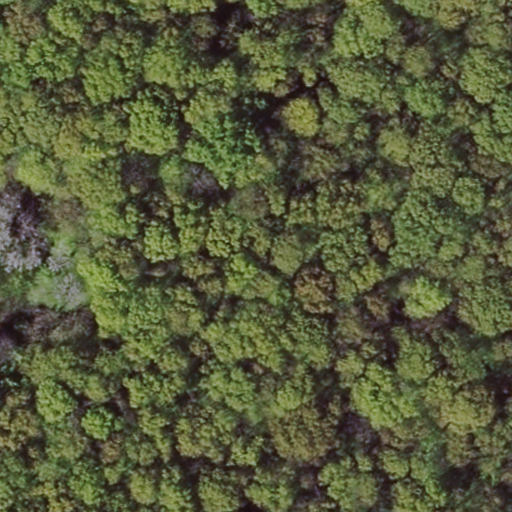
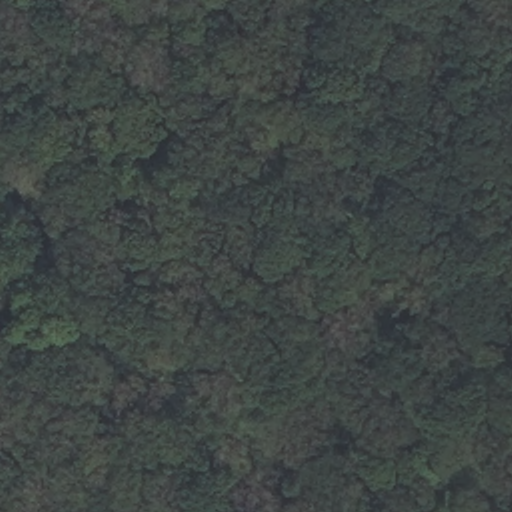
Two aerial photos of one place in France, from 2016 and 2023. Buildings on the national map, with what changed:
unchanged [(21,195),(17,224),(0,221),(0,192),(21,195)]

